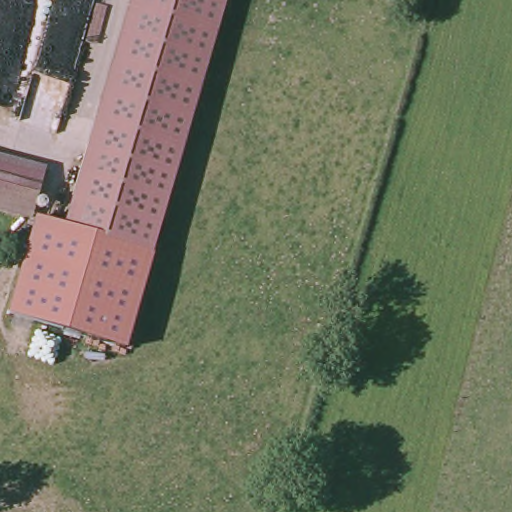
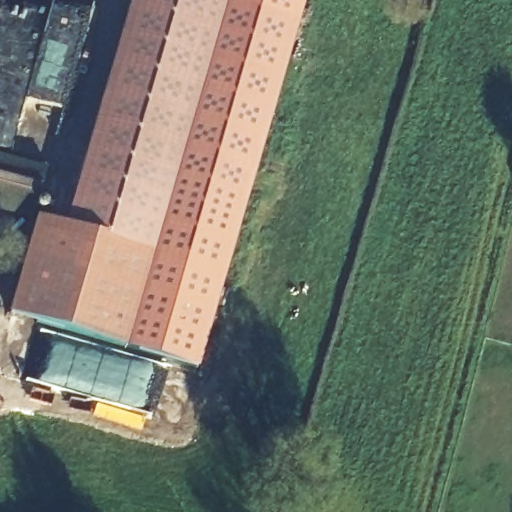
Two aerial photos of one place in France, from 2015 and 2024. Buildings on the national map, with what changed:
unchanged [(223,0),(195,106),(151,252),(102,241),(67,232),(92,147),(140,0),(223,0)]
new [(195,106),(223,0),(305,0),(197,372),(126,350),(151,252),(195,106)]
unchanged [(27,213),(0,207),(0,161),(37,170),(27,213)]
unchanged [(126,350),(7,314),(36,218),(69,227),(67,232),(102,241),(151,252),(126,350)]

